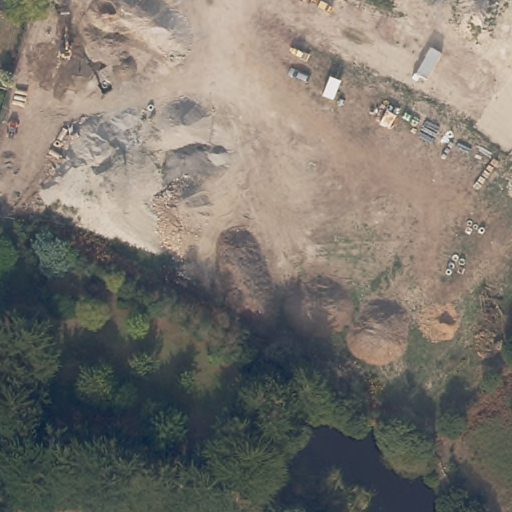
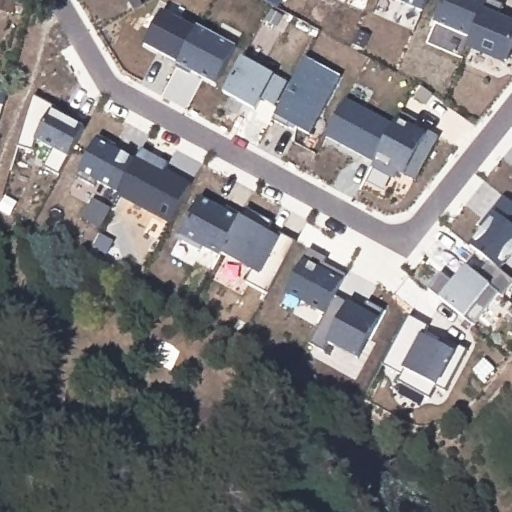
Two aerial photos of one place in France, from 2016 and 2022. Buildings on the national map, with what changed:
new [(421,12),(395,0),(427,0),(421,12)]
new [(445,0),(486,0),(469,38),(434,23),(445,0)]
new [(485,0),(502,0),(504,1),(498,15),(509,19),(512,15),(512,46),(507,57),(468,41),(485,0)]
new [(188,74),(174,66),(177,63),(144,47),(163,11),(196,29),(197,26),(237,48),(215,85),(191,71),(188,74)]
new [(341,78),(309,134),(274,114),(277,108),(263,100),(256,111),(223,94),(242,58),(275,78),(290,85),(305,59),(341,78)]
new [(45,168),(54,150),(37,141),(33,150),(17,147),(34,96),(54,107),(53,111),(83,127),(69,158),(61,176),(45,168)]
new [(346,98),(394,126),(398,120),(402,113),(418,121),(414,129),(425,134),(437,139),(414,179),(404,175),(398,172),(394,179),(371,168),(374,163),(326,137),(346,98)]
new [(119,193),(99,182),(97,187),(77,176),(80,171),(97,139),(137,159),(142,150),(167,163),(164,170),(192,184),(170,224),(117,195),(119,193)]
new [(254,272),(223,255),(223,258),(203,247),(201,252),(179,239),(181,234),(201,197),(241,218),(246,208),(270,222),(265,230),(278,238),(281,233),(294,242),(267,293),(247,280),(254,272)]
new [(499,295),(473,325),(465,319),(441,300),(429,290),(443,274),(453,284),(466,267),(480,277),(490,262),(470,247),(495,212),(506,197),(512,202),(512,255),(500,269),(512,279),(512,286),(503,298),(499,295)]
new [(359,359),(328,343),(325,351),(309,344),(322,313),(286,295),(305,260),(309,250),(326,258),(323,264),(345,276),(342,280),(333,297),(348,304),(362,311),(368,302),(384,311),(378,319),(359,359)]
new [(446,392),(437,387),(431,400),(398,383),(402,376),(384,366),(410,317),(430,326),(425,337),(441,346),(444,339),(468,350),(446,392)]

